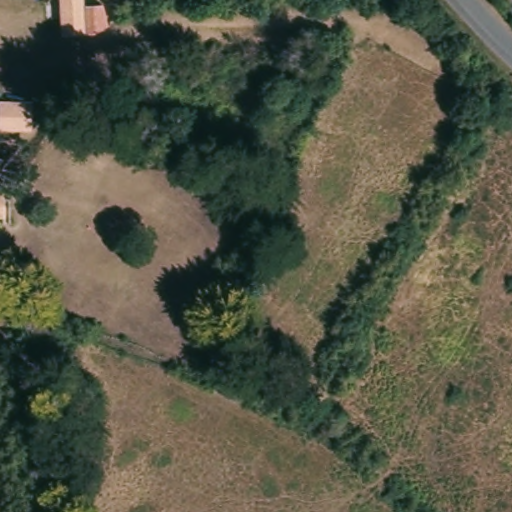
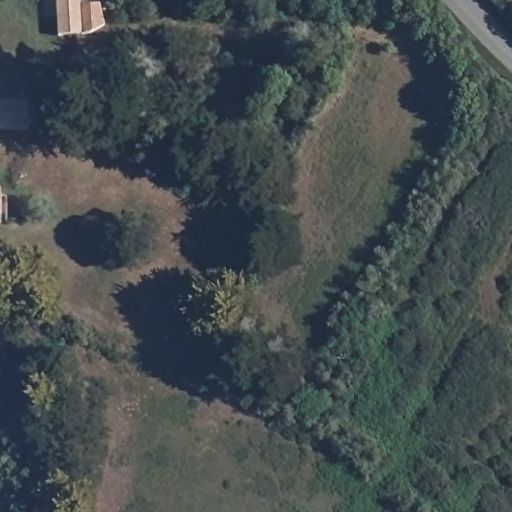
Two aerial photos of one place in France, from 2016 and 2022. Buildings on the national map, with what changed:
unchanged [(98,1),(100,24),(90,31),(82,31),(82,26),(80,3),(98,1)]
unchanged [(34,100),(33,129),(0,128),(0,99),(34,100)]
unchanged [(2,196),(2,210),(3,222),(0,223),(0,196),(2,196)]

